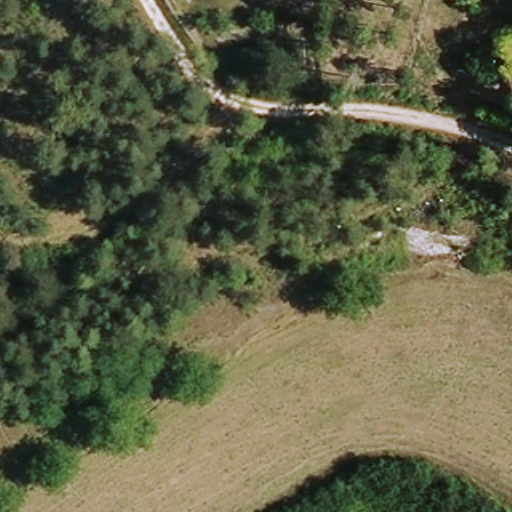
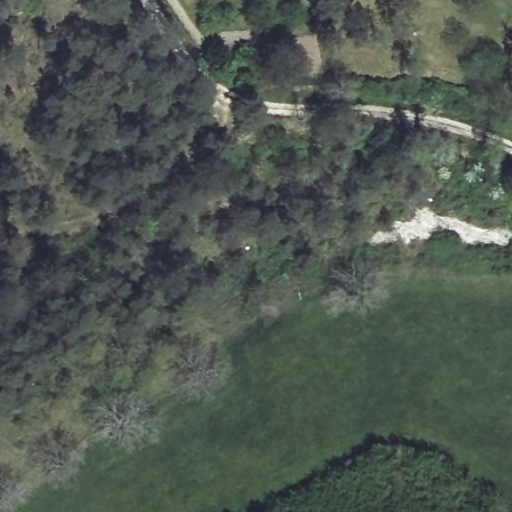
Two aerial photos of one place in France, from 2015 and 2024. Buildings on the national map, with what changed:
[]

